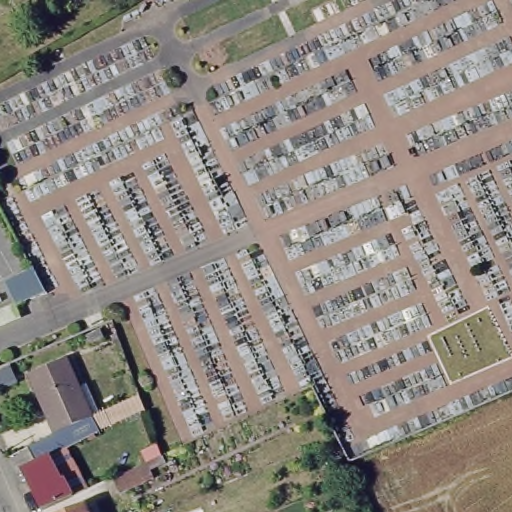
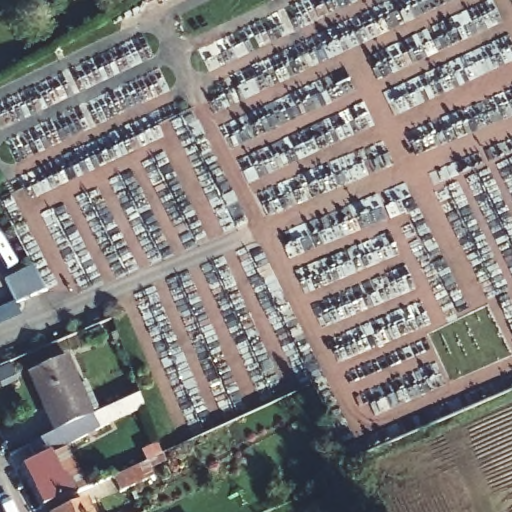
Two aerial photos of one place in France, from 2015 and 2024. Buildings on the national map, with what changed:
unchanged [(0,287),(0,279),(27,267),(37,290),(7,303),(0,287)]
unchanged [(0,307),(7,303),(13,320),(0,326),(0,307)]
unchanged [(26,370),(63,353),(92,416),(55,432),(26,370)]
unchanged [(32,446),(51,437),(57,450),(48,455),(58,476),(65,473),(73,491),(42,506),(23,468),(38,461),(32,446)]
unchanged [(148,462),(157,483),(120,498),(112,479),(148,462)]
unchanged [(85,504),(88,512),(66,512),(85,504)]

